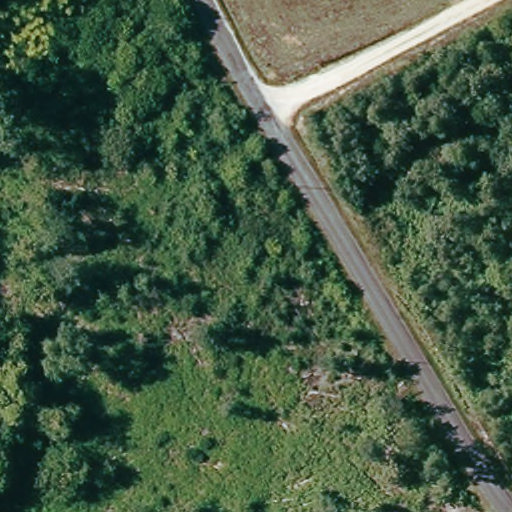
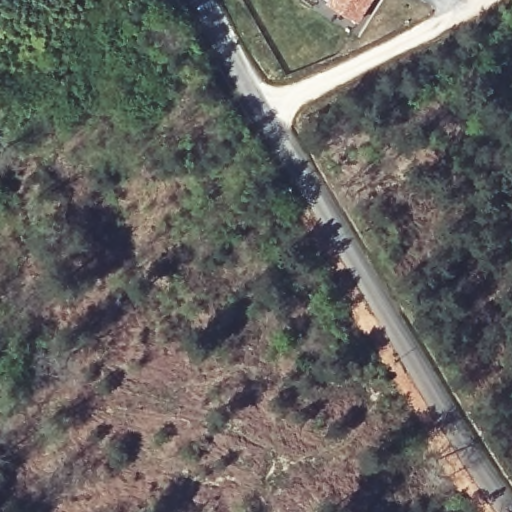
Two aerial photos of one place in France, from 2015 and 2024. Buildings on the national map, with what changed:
new [(358,22),(326,2),(328,0),(371,0),(358,22)]

